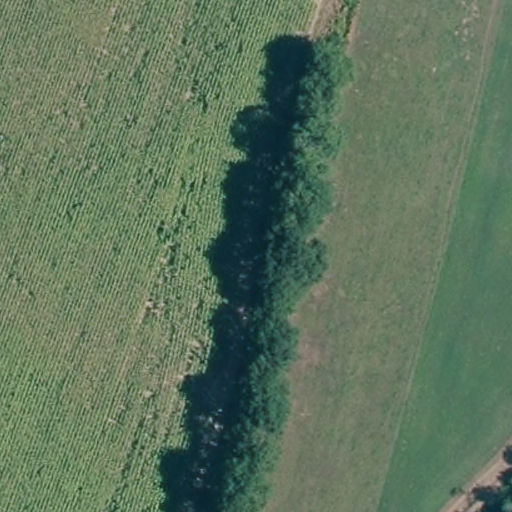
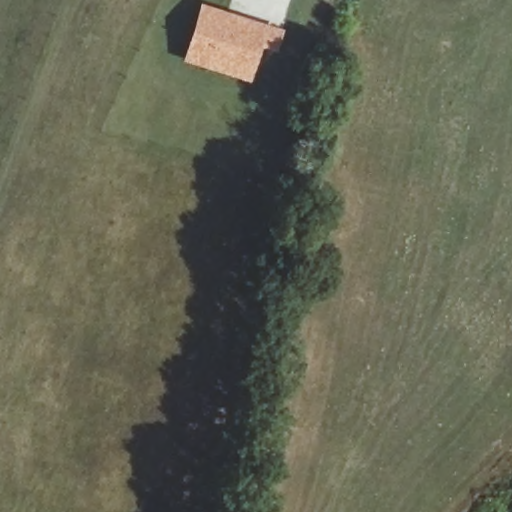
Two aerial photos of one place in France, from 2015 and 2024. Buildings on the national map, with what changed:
new [(200,1),(284,26),(276,51),(262,48),(250,82),(181,60),(200,1)]

